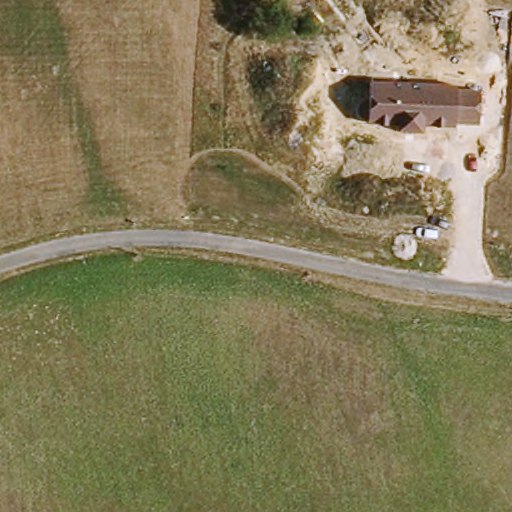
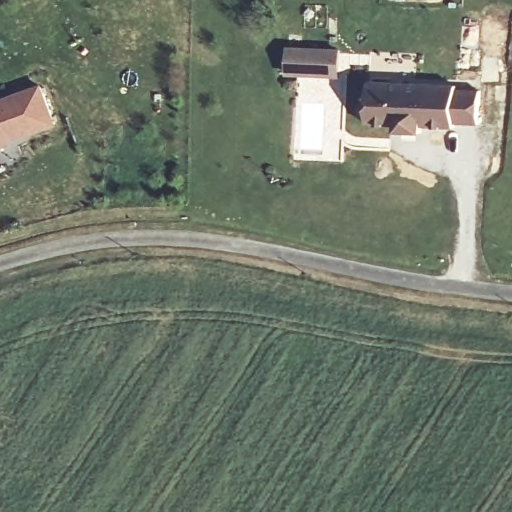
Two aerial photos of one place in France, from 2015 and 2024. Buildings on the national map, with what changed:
new [(288,48),(340,50),(340,77),(287,75),(288,48)]
unchanged [(457,83),(457,91),(480,92),(478,124),(455,122),(455,130),(422,127),(422,131),(396,129),(395,125),(368,124),(370,79),(457,83)]
new [(57,123),(12,141),(0,150),(0,98),(42,84),(57,123)]

